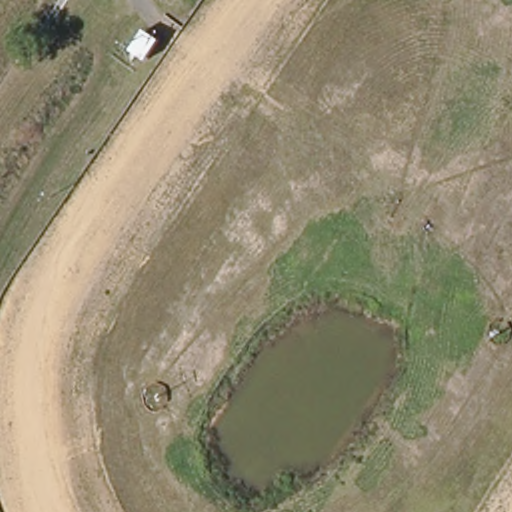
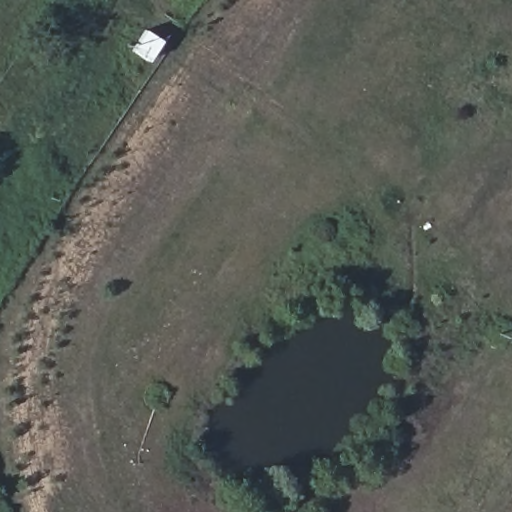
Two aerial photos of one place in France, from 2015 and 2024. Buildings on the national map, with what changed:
unchanged [(143,60),(128,50),(141,27),(155,38),(143,60)]

